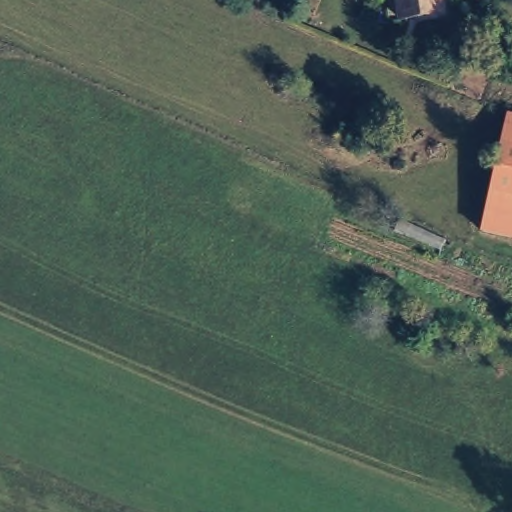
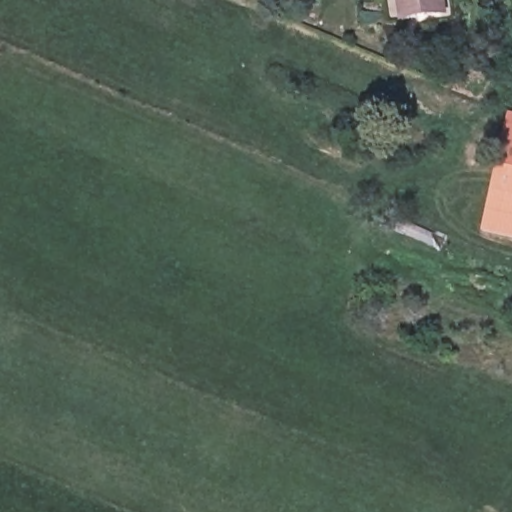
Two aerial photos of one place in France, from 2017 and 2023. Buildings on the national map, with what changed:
unchanged [(402,14),(400,0),(440,0),(442,8),(402,14)]
unchanged [(481,216),(512,108),(512,225),(481,216)]

